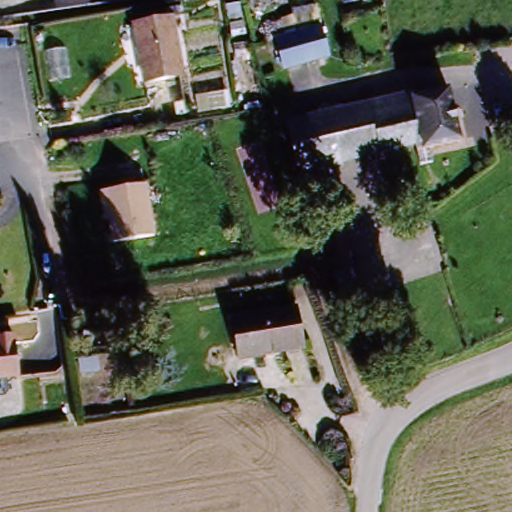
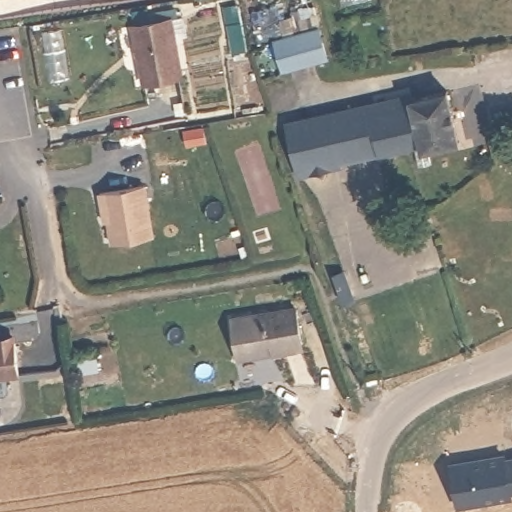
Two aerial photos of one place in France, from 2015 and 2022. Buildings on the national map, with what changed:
unchanged [(137,87),(127,32),(164,25),(174,80),(137,87)]
unchanged [(280,40),(298,34),(322,26),(332,52),(307,60),(289,66),(280,40)]
unchanged [(412,102),(447,95),(457,145),(422,154),(421,148),(412,102)]
unchanged [(411,97),(412,102),(421,148),(297,175),(287,125),(411,97)]
unchanged [(147,183),(158,240),(110,246),(106,225),(102,225),(97,192),(147,183)]
unchanged [(343,302),(334,278),(342,275),(351,300),(343,302)]
unchanged [(229,323),(295,310),(302,347),(235,361),(229,323)]
unchanged [(13,375),(0,377),(0,341),(7,340),(13,375)]
new [(512,485),(512,504),(461,512),(458,512),(449,458),(507,450),(512,485)]

